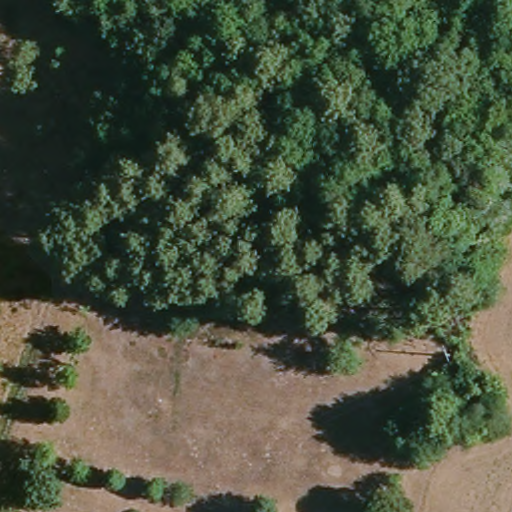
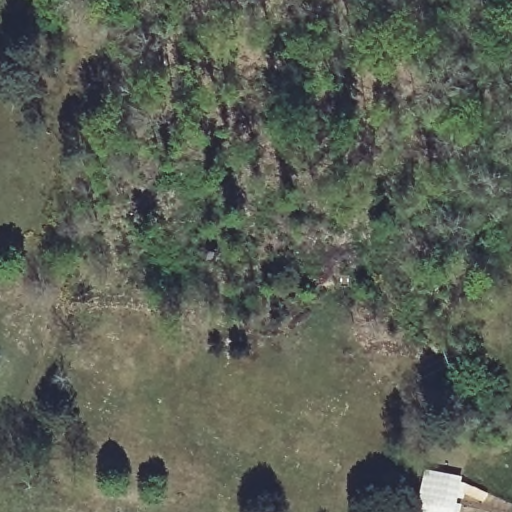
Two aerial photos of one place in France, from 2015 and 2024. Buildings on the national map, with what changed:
new [(464,475),(463,481),(488,492),(483,501),(464,493),(460,512),(417,512),(424,467),(464,475)]

